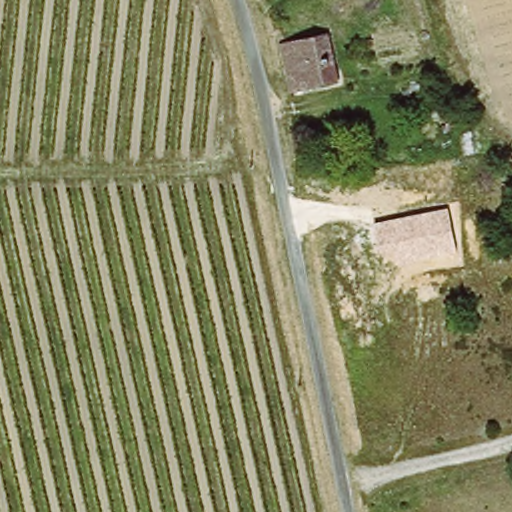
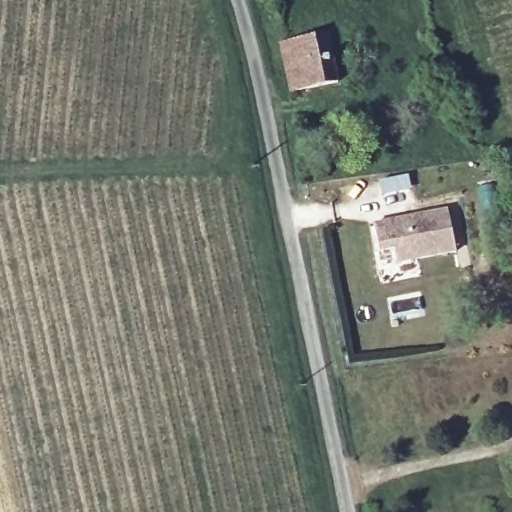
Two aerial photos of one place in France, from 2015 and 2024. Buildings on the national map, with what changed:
unchanged [(336,80),(290,89),(280,41),(325,32),(336,80)]
unchanged [(447,209),(455,253),(399,264),(396,251),(381,254),(374,224),(447,209)]

